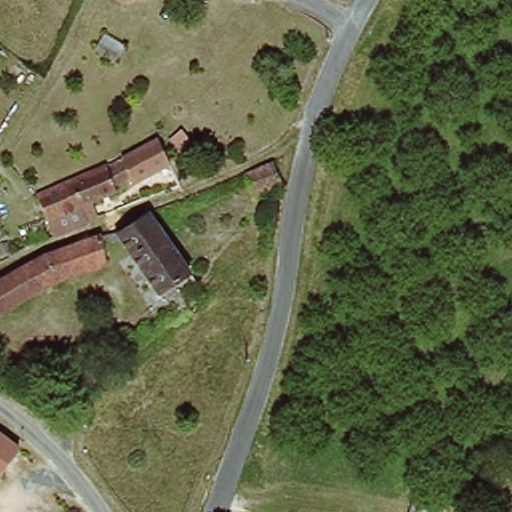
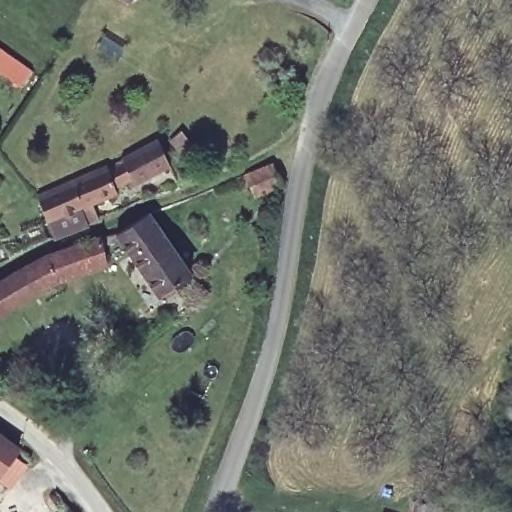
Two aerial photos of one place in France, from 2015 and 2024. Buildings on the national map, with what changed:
unchanged [(130,0),(126,5),(118,0),(130,0)]
new [(23,83),(0,68),(0,45),(33,68),(23,83)]
unchanged [(171,167),(136,185),(121,157),(157,136),(171,167)]
unchanged [(79,210),(43,223),(35,194),(120,155),(128,174),(113,181),(118,190),(91,202),(100,221),(86,227),(79,210)]
unchanged [(273,191),(245,203),(233,177),(261,166),(273,191)]
unchanged [(115,235),(147,215),(188,269),(156,292),(115,235)]
unchanged [(96,242),(102,262),(59,276),(0,310),(0,277),(44,253),(96,242)]
unchanged [(0,462),(0,438),(10,445),(0,462)]
unchanged [(396,512),(390,512),(391,510),(396,512)]

